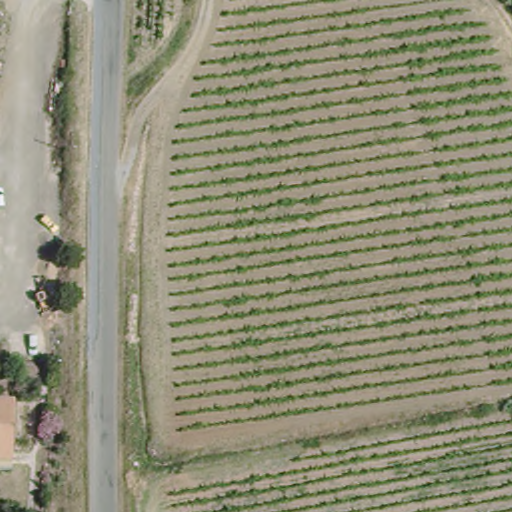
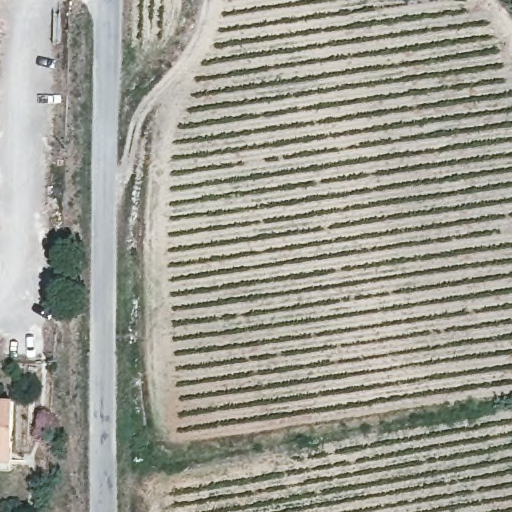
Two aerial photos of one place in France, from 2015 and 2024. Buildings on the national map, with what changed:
unchanged [(10,450),(0,449),(0,398),(13,399),(10,450)]

